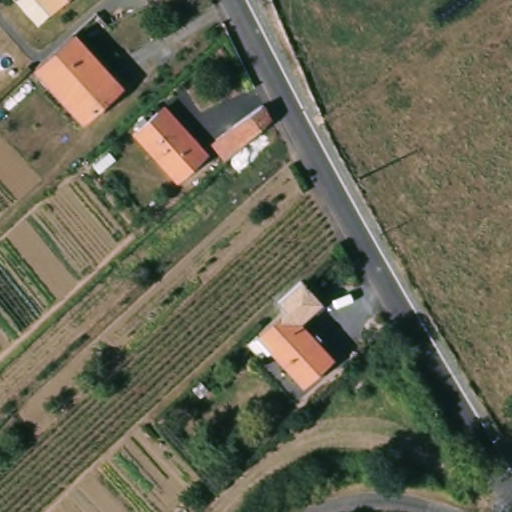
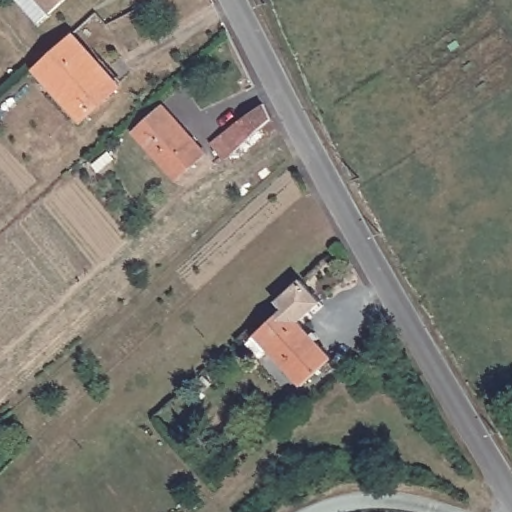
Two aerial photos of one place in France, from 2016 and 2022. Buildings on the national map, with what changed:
unchanged [(37,25),(31,17),(31,16),(17,0),(64,0),(37,25)]
unchanged [(81,120),(35,67),(71,35),(118,86),(81,120)]
unchanged [(226,136),(267,105),(274,120),(238,153),(229,161),(216,144),(226,136)]
unchanged [(135,132),(160,110),(162,107),(184,130),(205,152),(176,179),(135,132)]
unchanged [(251,348),(260,340),(282,320),(288,314),(281,306),(305,285),(312,292),(325,306),(305,326),(338,362),(307,390),(274,355),(265,363),(251,348)]

